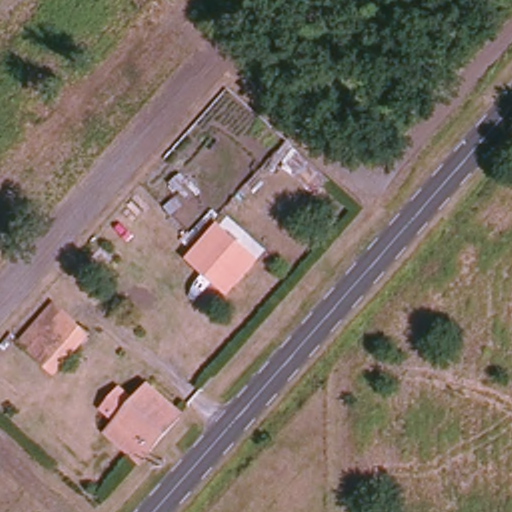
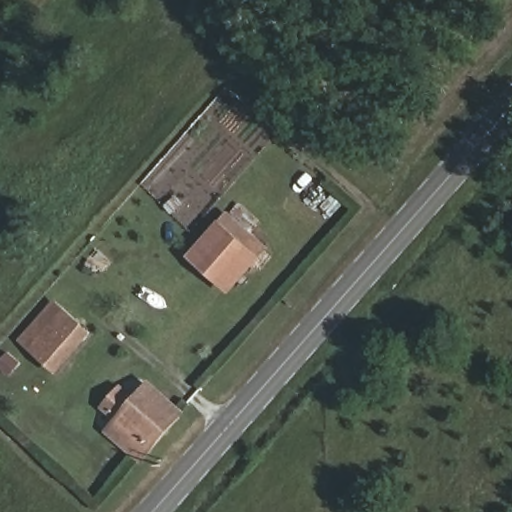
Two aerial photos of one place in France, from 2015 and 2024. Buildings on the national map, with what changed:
unchanged [(219,221),(261,260),(230,296),(186,257),(219,221)]
unchanged [(83,333),(55,366),(29,343),(57,311),(83,333)]
unchanged [(140,458),(114,432),(151,388),(181,413),(140,458)]

